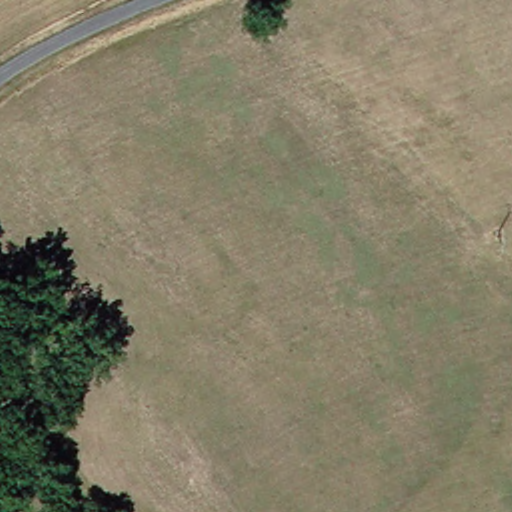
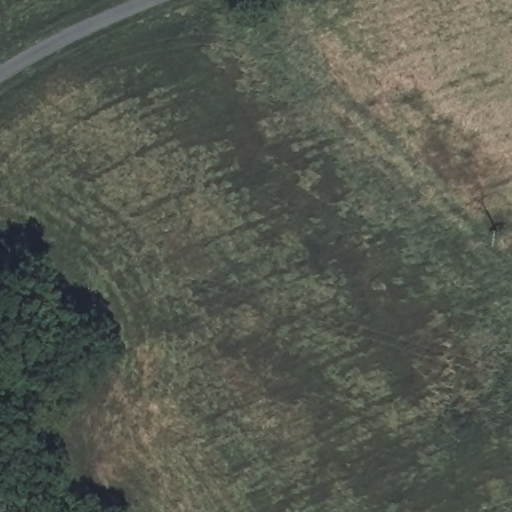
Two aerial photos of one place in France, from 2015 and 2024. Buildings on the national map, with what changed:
[]

